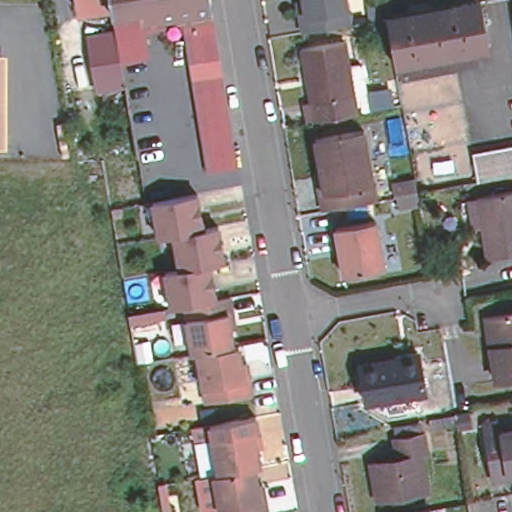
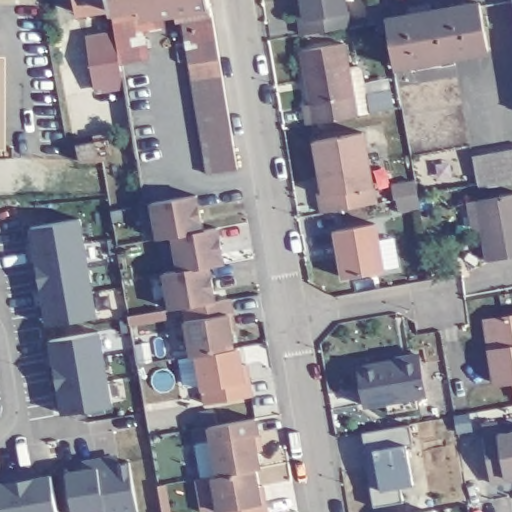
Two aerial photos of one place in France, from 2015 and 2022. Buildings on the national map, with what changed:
unchanged [(77,0),(110,0),(111,8),(80,13),(77,0)]
unchanged [(205,166),(202,150),(200,133),(180,20),(177,20),(176,12),(152,16),(154,30),(151,32),(152,36),(145,38),(144,55),(119,59),(123,84),(96,88),(89,54),(117,50),(113,20),(111,8),(110,0),(208,0),(210,15),(216,47),(233,145),(237,168),(207,172),(205,166)]
unchanged [(302,35),(299,19),(305,18),(303,0),(345,0),(350,27),(302,35)]
unchanged [(480,5),(488,52),(395,69),(386,20),(480,5)]
unchanged [(347,68),(357,67),(362,70),(370,114),(355,116),(352,97),(309,104),(300,51),(343,43),(347,68)]
unchanged [(352,97),(355,116),(305,125),(302,105),(309,104),(352,97)]
unchanged [(385,97),(386,110),(372,111),(370,99),(385,97)]
unchanged [(322,213),(318,197),(325,195),(315,141),(363,132),(375,204),(322,213)]
unchanged [(477,186),(472,158),(512,152),(512,180),(477,186)]
unchanged [(420,210),(397,214),(395,200),(393,186),(415,183),(417,196),(420,210)]
unchanged [(487,259),(475,201),(512,193),(512,254),(487,259)]
unchanged [(198,195),(204,229),(220,227),(227,267),(212,268),(219,306),(189,311),(169,308),(162,272),(175,269),(170,236),(157,237),(152,204),(198,195)]
new [(32,223),(81,215),(85,240),(36,248),(32,223)]
unchanged [(383,273),(344,280),(335,231),(374,224),(383,273)]
new [(36,248),(85,240),(90,264),(40,272),(36,248)]
new [(40,272),(90,264),(93,288),(44,296),(40,272)]
new [(93,288),(97,313),(48,321),(44,296),(93,288)]
unchanged [(253,387),(255,401),(208,409),(207,396),(188,399),(183,363),(196,360),(189,311),(219,306),(235,303),(237,319),(231,320),(237,353),(242,353),(247,388),(253,387)]
unchanged [(133,328),(132,320),(166,315),(170,314),(172,322),(133,328)]
unchanged [(500,386),(493,350),(488,319),(495,318),(512,315),(512,384),(500,386)]
new [(110,404),(63,412),(52,339),(98,331),(110,404)]
unchanged [(425,397),(415,398),(417,410),(388,414),(387,403),(365,407),(360,368),(420,359),(425,397)]
unchanged [(210,430),(257,422),(259,439),(253,439),(260,473),(255,474),(218,480),(210,430)]
unchanged [(505,479),(505,483),(492,486),(486,454),(483,439),(498,436),(512,434),(512,478),(505,479)]
unchanged [(417,457),(419,472),(398,475),(402,495),(370,501),(367,481),(374,480),(372,464),(370,443),(378,442),(418,435),(422,456),(417,457)]
new [(128,461),(137,512),(106,512),(105,510),(95,512),(73,512),(65,472),(82,469),(82,460),(110,455),(112,464),(128,461)]
new [(0,512),(0,483),(52,474),(58,512),(0,512)]
unchanged [(255,474),(260,507),(265,507),(266,512),(218,512),(213,481),(218,480),(255,474)]
unchanged [(174,512),(165,512),(173,510),(174,512)]

